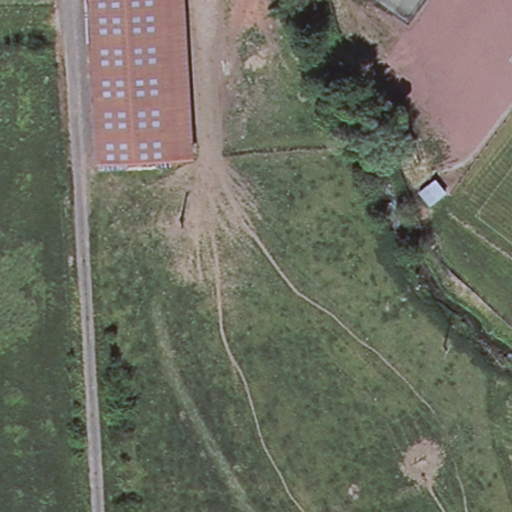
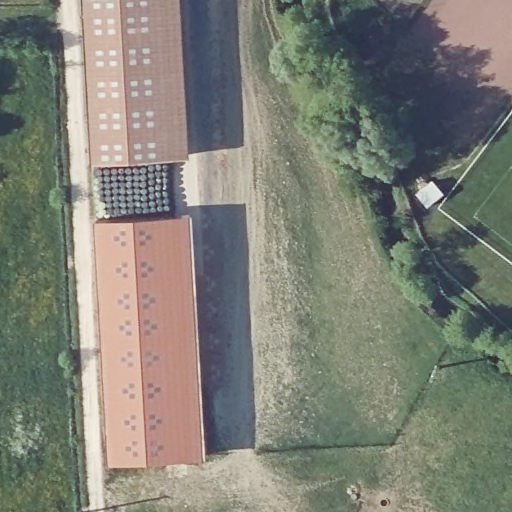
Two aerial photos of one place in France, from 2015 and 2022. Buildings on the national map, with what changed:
unchanged [(181,159),(101,162),(92,0),(172,0),(181,159)]
new [(190,223),(203,464),(110,468),(94,226),(190,223)]

